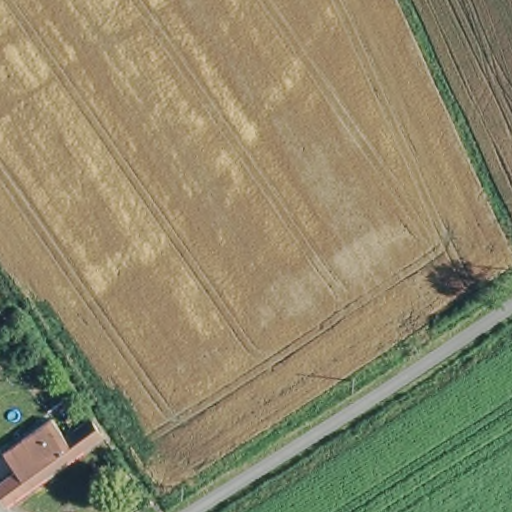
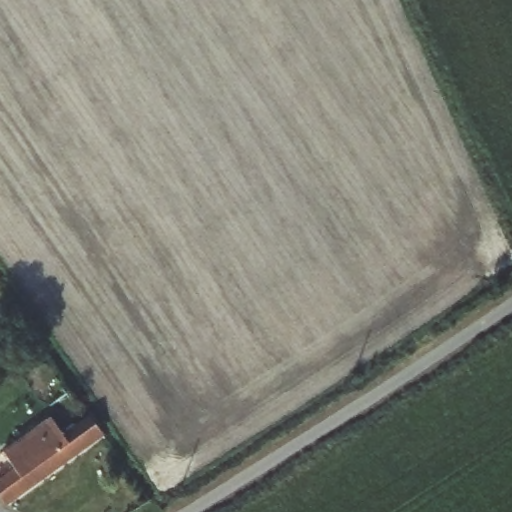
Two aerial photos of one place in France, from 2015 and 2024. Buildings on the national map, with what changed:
unchanged [(65,438),(86,423),(98,438),(4,504),(0,500),(0,483),(15,472),(5,458),(53,422),(65,438)]

